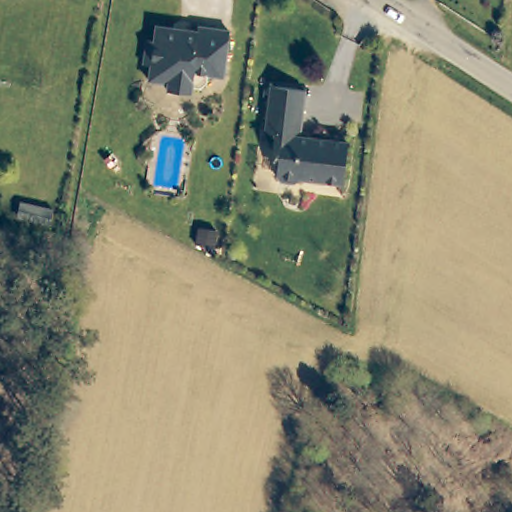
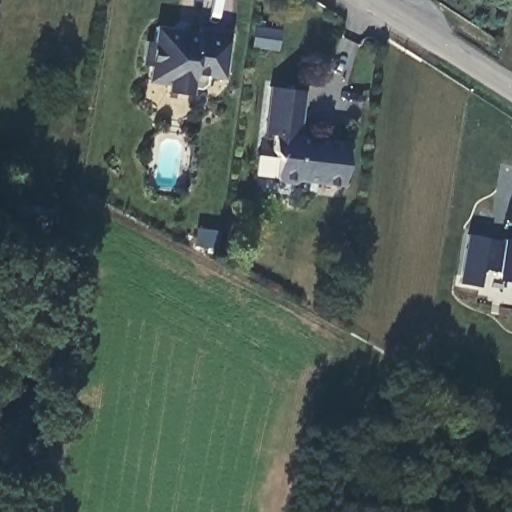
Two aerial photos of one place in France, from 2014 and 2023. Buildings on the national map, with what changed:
unchanged [(222,77),(210,75),(208,88),(202,92),(194,91),(192,98),(167,94),(167,87),(148,85),(150,67),(141,65),(146,39),(155,40),(157,25),(178,29),(177,35),(198,39),(199,27),(231,32),(222,77)]
unchanged [(345,185),(300,179),(295,185),(283,184),(279,177),(279,162),(271,151),(272,138),(266,136),(268,87),(306,90),(302,138),(348,142),(345,185)]
unchanged [(52,227),(22,221),(24,206),(54,212),(52,227)]
new [(498,279),(500,270),(485,268),(480,286),(460,282),(467,233),(504,240),(505,237),(512,238),(512,282),(498,279)]

